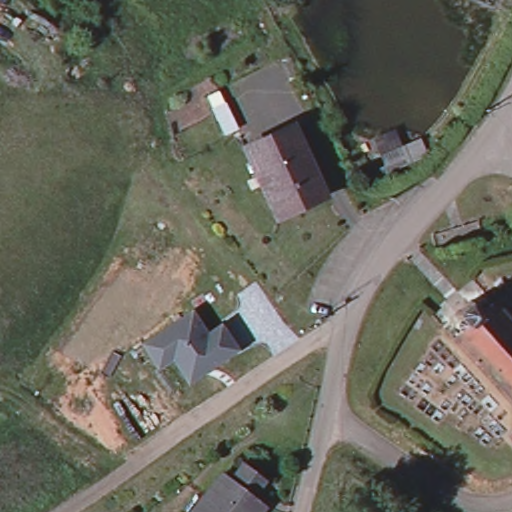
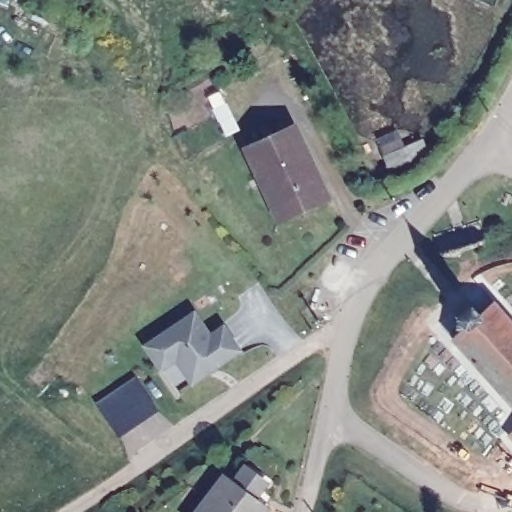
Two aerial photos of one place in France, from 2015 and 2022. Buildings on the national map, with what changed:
unchanged [(250,147),(296,127),(326,196),(280,216),(266,184),(262,175),(250,147)]
unchanged [(395,165),(387,169),(377,136),(396,129),(401,142),(416,133),(425,149),(403,161),(395,166),(395,165)]
unchanged [(462,140),(457,149),(447,144),(452,135),(462,140)]
unchanged [(512,322),(512,406),(451,336),(459,329),(452,322),(458,316),(453,310),(469,296),(480,310),(492,298),(512,322)]
unchanged [(243,348),(194,380),(178,356),(164,365),(155,352),(148,342),(197,310),(199,311),(213,333),(227,324),(243,348)]
new [(159,410),(118,436),(95,402),(135,376),(159,410)]
unchanged [(506,432),(512,427),(512,440),(506,432)]
unchanged [(234,478),(247,462),(270,480),(257,496),(268,506),(263,512),(195,512),(227,472),(234,478)]

